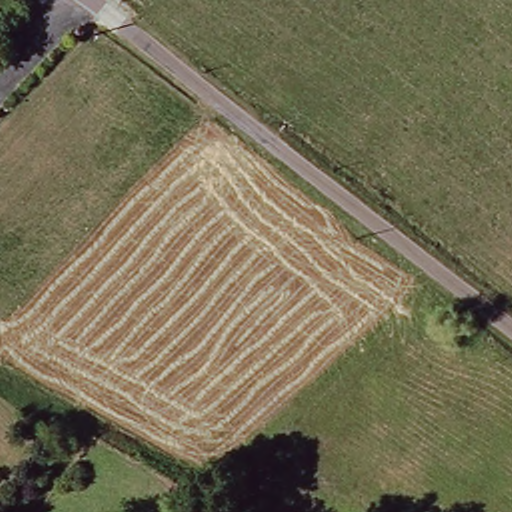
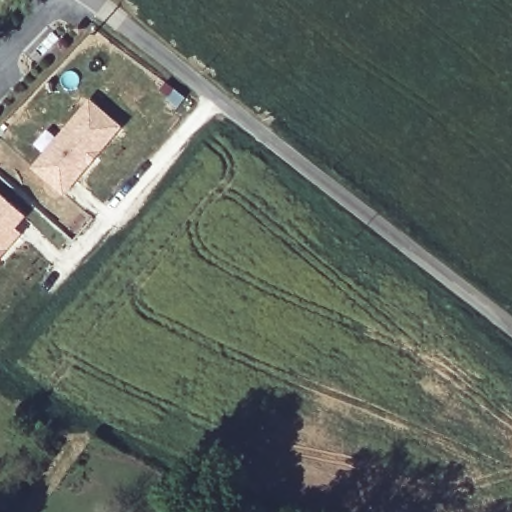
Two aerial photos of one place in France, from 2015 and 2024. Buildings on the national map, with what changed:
new [(89,99),(121,126),(61,196),(31,168),(89,99)]
new [(0,259),(0,194),(26,218),(15,229),(21,234),(0,259)]

